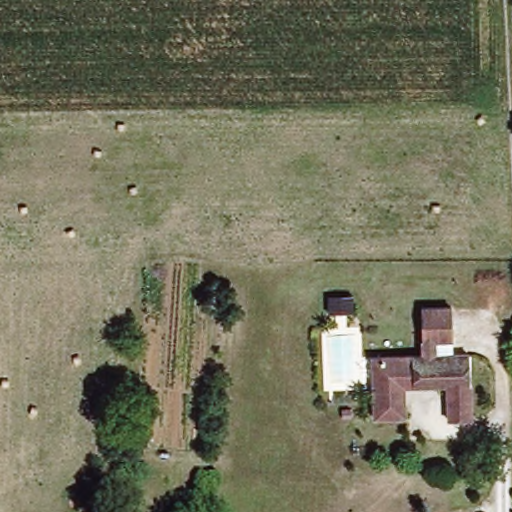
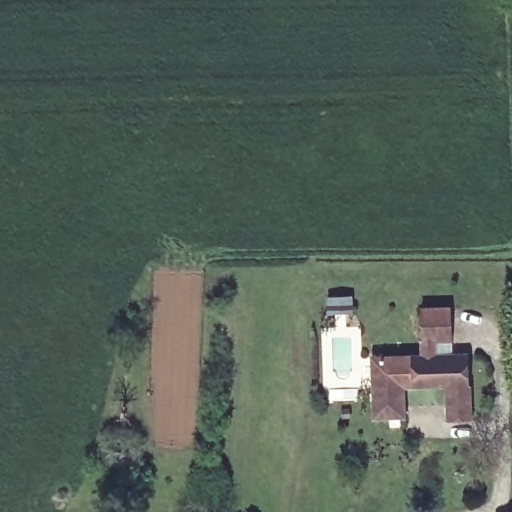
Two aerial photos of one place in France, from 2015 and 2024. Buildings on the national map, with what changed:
unchanged [(371,415),(371,385),(370,355),(420,353),(420,307),(448,306),(449,337),(432,338),(432,353),(465,352),(467,417),(445,417),(444,382),(400,384),(400,414),(371,415)]

